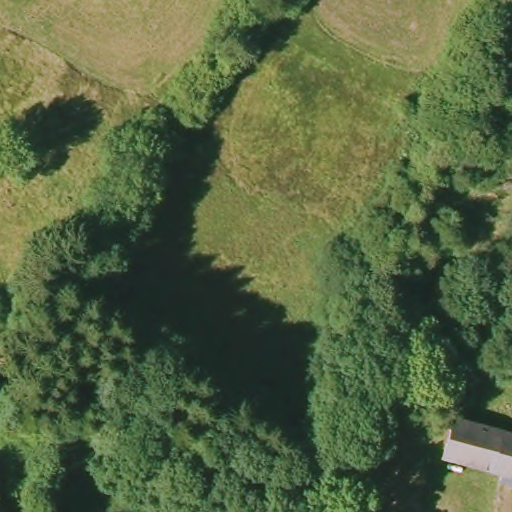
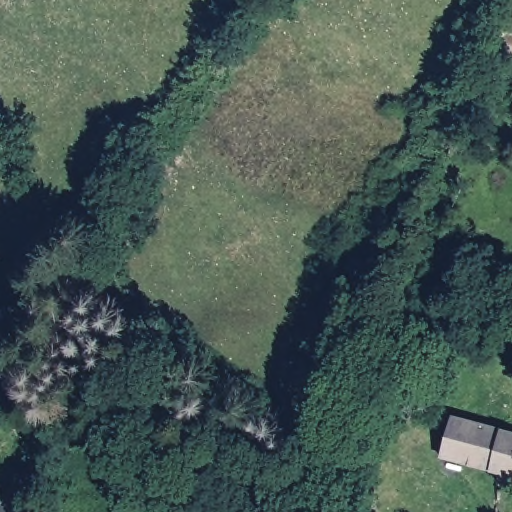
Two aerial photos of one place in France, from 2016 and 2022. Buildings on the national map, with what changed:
unchanged [(460,463),(440,456),(452,417),(512,432),(512,475),(460,463)]
unchanged [(0,510),(2,512),(0,512),(0,510)]

